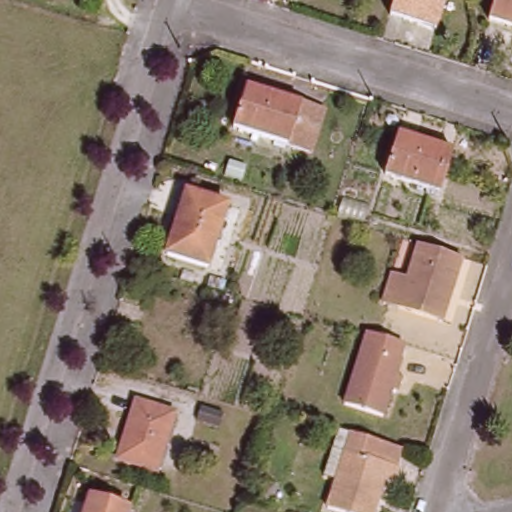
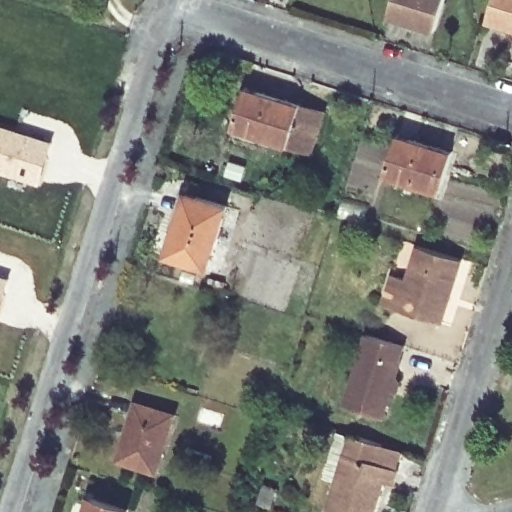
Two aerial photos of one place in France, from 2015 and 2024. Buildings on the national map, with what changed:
unchanged [(389,0),(439,0),(432,25),(386,12),(389,0)]
unchanged [(512,25),(485,16),(490,0),(512,0),(512,25)]
unchanged [(288,146),(234,129),(247,87),(302,104),(288,146)]
unchanged [(326,111),(312,153),(288,146),(302,104),(326,111)]
new [(54,141),(40,186),(0,172),(0,124),(54,141)]
unchanged [(430,188),(385,174),(397,132),(443,147),(430,188)]
unchanged [(162,251),(182,188),(223,201),(204,263),(162,251)]
unchanged [(437,323),(378,305),(388,274),(403,279),(414,246),(438,253),(457,259),(437,323)]
new [(11,277),(0,312),(0,274),(11,277)]
unchanged [(405,346),(400,360),(402,361),(397,375),(400,382),(393,385),(382,417),(345,406),(367,334),(405,346)]
unchanged [(175,415),(157,472),(119,460),(137,402),(175,415)]
unchanged [(403,451),(404,451),(393,485),(382,481),(373,507),(376,508),(375,512),(332,512),(327,511),(337,482),(325,478),(340,431),(371,440),(403,451)]
unchanged [(121,512),(79,512),(86,493),(123,505),(121,512)]

